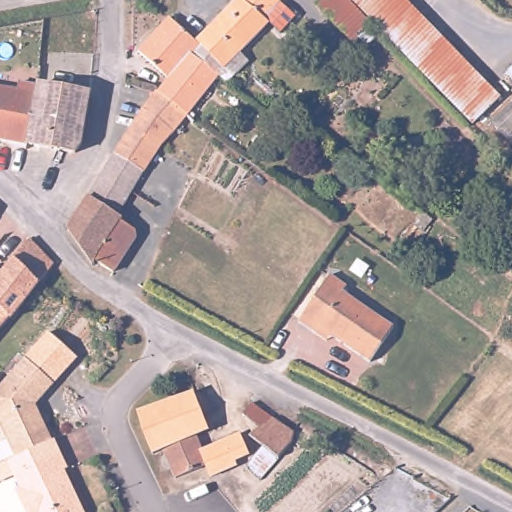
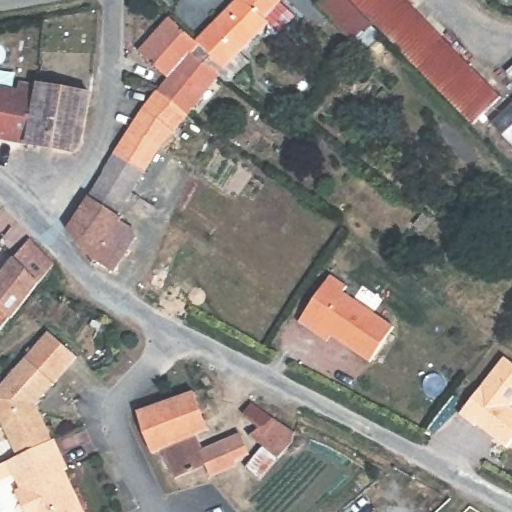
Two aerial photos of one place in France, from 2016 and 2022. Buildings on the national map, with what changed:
unchanged [(223,78),(196,53),(202,46),(245,0),(283,0),(286,3),(270,19),(275,24),(246,54),(245,53),(223,78)]
unchanged [(502,65),(512,76),(512,91),(477,123),(386,31),(373,46),(366,38),(361,43),(320,0),(413,0),(491,78),(502,65)]
unchanged [(196,53),(223,78),(192,115),(162,90),(170,79),(141,53),(174,19),(202,46),(196,53)]
unchanged [(145,236),(120,270),(105,257),(101,261),(76,229),(120,155),(141,121),(162,90),(192,115),(202,124),(181,153),(170,144),(151,174),(126,210),(136,218),(144,223),(145,236)]
unchanged [(0,95),(37,99),(39,91),(91,100),(80,151),(74,158),(15,146),(0,144),(0,95)]
unchanged [(487,124),(512,100),(512,150),(487,124)]
unchanged [(0,210),(0,200),(5,204),(0,210)]
unchanged [(19,316),(0,338),(0,306),(3,303),(0,299),(0,259),(10,268),(20,254),(36,238),(60,262),(44,283),(19,316)]
unchanged [(351,284),(347,289),(392,323),(368,359),(322,326),(317,331),(301,318),(334,272),(351,284)]
new [(504,356),(512,362),(512,405),(511,407),(512,408),(512,439),(505,449),(476,426),(475,428),(458,416),(504,356)]
unchanged [(50,393),(30,408),(49,445),(48,445),(13,463),(11,463),(0,438),(0,390),(21,366),(50,393)]
unchanged [(215,429),(203,434),(210,448),(248,432),(256,454),(214,472),(210,461),(179,477),(169,449),(158,453),(144,411),(200,391),(215,429)]
unchanged [(266,473),(253,461),(269,445),(256,434),(263,426),(247,412),(260,399),(301,437),(266,473)]
unchanged [(48,445),(49,445),(50,445),(65,475),(62,476),(79,512),(19,512),(12,497),(16,495),(10,481),(0,485),(0,468),(3,467),(11,463),(13,463),(48,445)]

